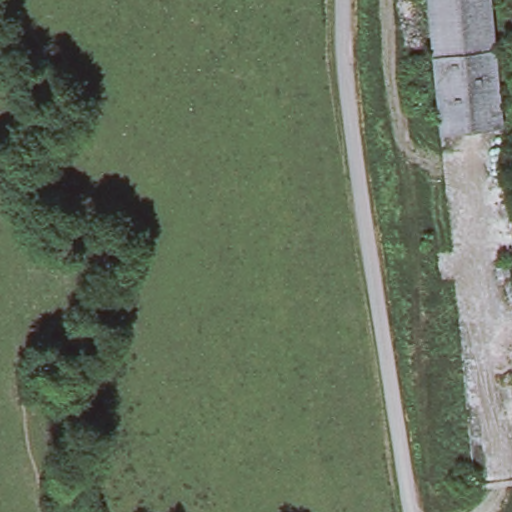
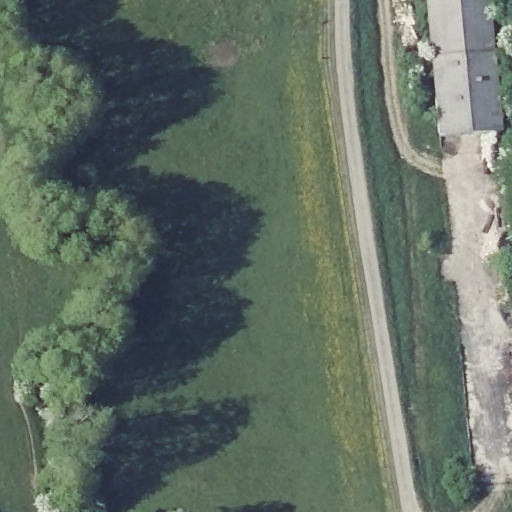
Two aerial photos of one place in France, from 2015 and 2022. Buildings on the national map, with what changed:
unchanged [(493,0),(507,131),(440,137),(426,0),(493,0)]

